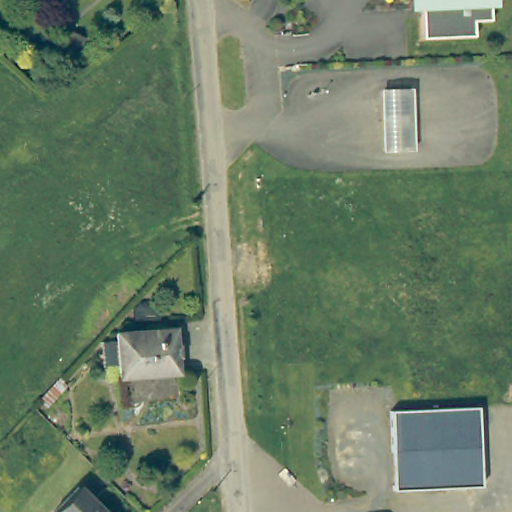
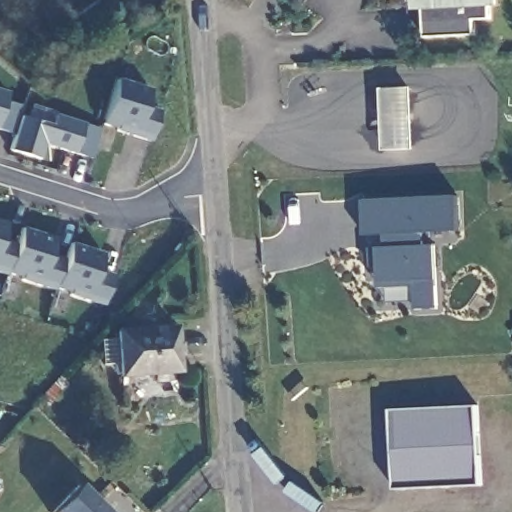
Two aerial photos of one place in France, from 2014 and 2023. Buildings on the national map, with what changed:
unchanged [(490,4),(490,19),(474,20),(474,35),(423,37),(422,0),(495,0),(495,4),(490,4)]
unchanged [(61,52),(67,40),(70,32),(83,37),(79,46),(73,58),(61,52)]
new [(148,104),(160,109),(149,142),(115,133),(116,129),(102,125),(118,77),(149,86),(148,104)]
new [(43,147),(39,159),(9,151),(14,135),(0,131),(0,89),(7,91),(5,100),(21,105),(18,116),(52,124),(55,115),(100,129),(89,159),(43,147)]
unchanged [(411,147),(385,149),(383,90),(408,90),(411,147)]
new [(458,229),(423,232),(424,244),(434,243),(437,307),(413,308),(412,284),(379,286),(377,266),(371,266),(371,247),(377,247),(383,247),(382,235),(365,236),(364,200),(457,195),(458,229)]
new [(0,240),(16,245),(21,227),(53,237),(48,254),(65,259),(71,242),(102,251),(100,269),(112,273),(104,306),(67,295),(69,292),(56,288),(53,292),(19,282),(20,278),(6,273),(4,275),(0,274),(0,221),(5,222),(0,240)]
unchanged [(173,323),(177,367),(119,372),(118,359),(103,360),(101,336),(116,335),(116,327),(173,323)]
unchanged [(56,379),(65,387),(46,407),(38,398),(56,379)]
unchanged [(397,492),(397,461),(384,452),(383,412),(471,408),(474,489),(397,492)]
unchanged [(78,487),(105,512),(53,512),(78,487)]

